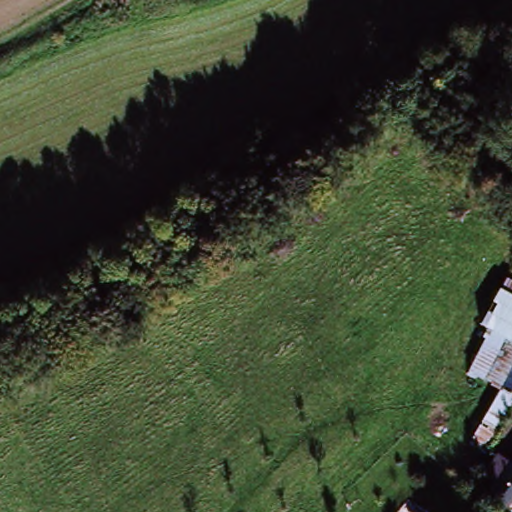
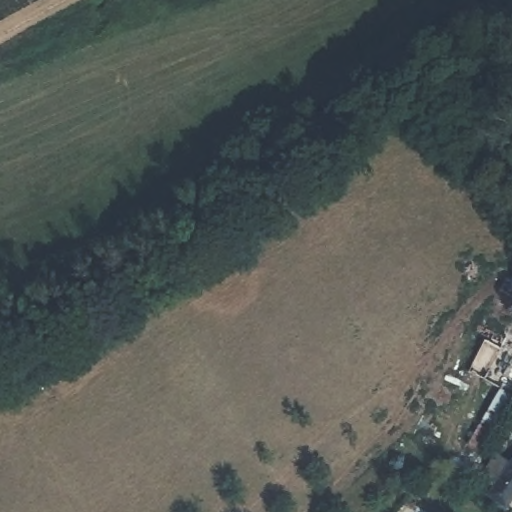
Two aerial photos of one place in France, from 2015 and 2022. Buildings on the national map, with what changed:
unchanged [(512,302),(512,406),(475,477),(457,467),(464,457),(497,389),(465,374),(487,333),(476,327),(487,304),(494,292),(512,302)]
unchanged [(504,508),(484,494),(512,456),(512,497),(504,508)]

